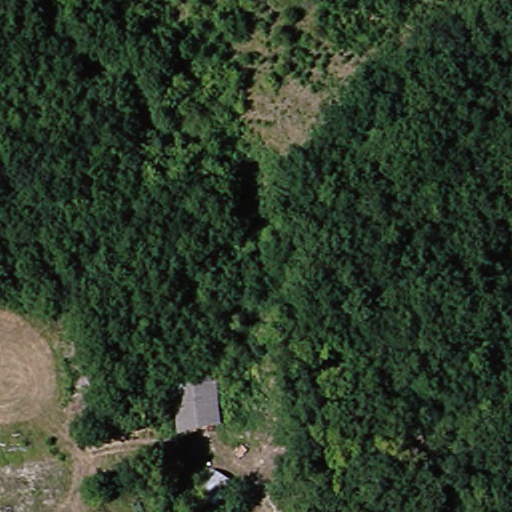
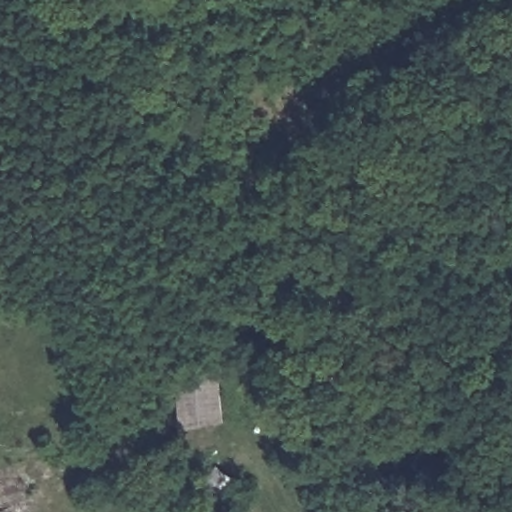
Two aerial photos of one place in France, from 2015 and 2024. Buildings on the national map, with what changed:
unchanged [(175,389),(215,385),(221,426),(179,430),(175,389)]

